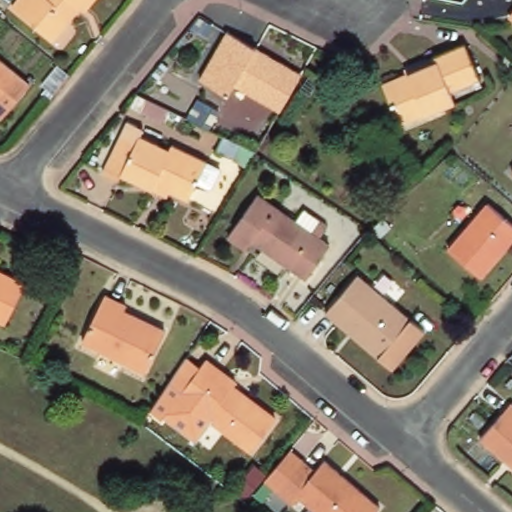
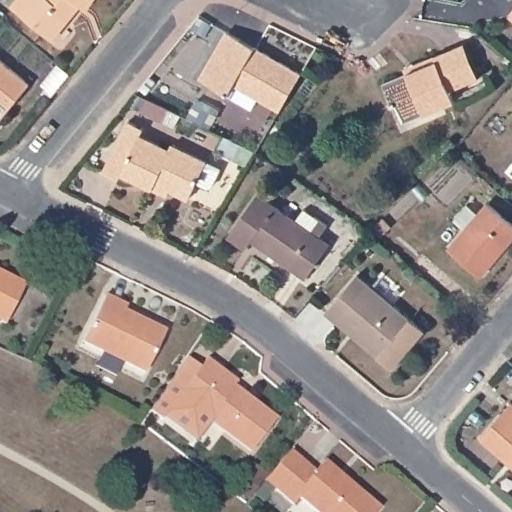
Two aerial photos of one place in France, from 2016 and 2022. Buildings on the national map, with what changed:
unchanged [(81,6),(52,41),(13,7),(19,0),(94,0),(85,10),(81,6)]
unchanged [(510,15),(512,13),(512,25),(506,20),(510,15)]
unchanged [(301,75),(279,112),(233,86),(226,97),(198,82),(226,32),(301,75)]
unchanged [(432,63),(430,59),(462,47),(476,82),(445,94),(449,105),(400,125),(392,106),(387,108),(378,85),(432,63)]
unchanged [(0,116),(0,61),(27,83),(0,116)]
unchanged [(141,131),(138,137),(167,151),(170,147),(206,164),(188,202),(155,186),(151,192),(121,176),(117,183),(101,175),(125,124),(141,131)]
unchanged [(259,197),(296,224),(305,212),(328,228),(319,241),(330,247),(306,282),(254,246),(248,254),(229,240),(259,197)]
unchanged [(512,223),(512,240),(481,276),(450,252),(490,205),(512,223)]
unchanged [(356,277),(425,334),(393,372),(361,346),(364,343),(340,323),(337,327),(324,315),(356,277)]
unchanged [(5,327),(0,324),(0,279),(23,290),(5,327)]
unchanged [(102,297),(123,307),(120,312),(163,332),(142,376),(79,344),(102,297)]
unchanged [(202,356),(234,381),(231,386),(273,418),(248,450),(174,392),(202,356)]
unchanged [(511,405),(512,406),(512,467),(480,441),(511,405)]
unchanged [(290,451),(317,473),(326,462),(369,498),(357,512),(315,512),(303,502),(296,509),(264,483),(290,451)]

